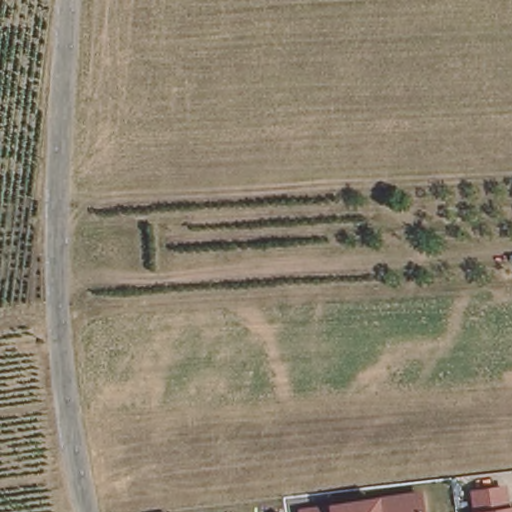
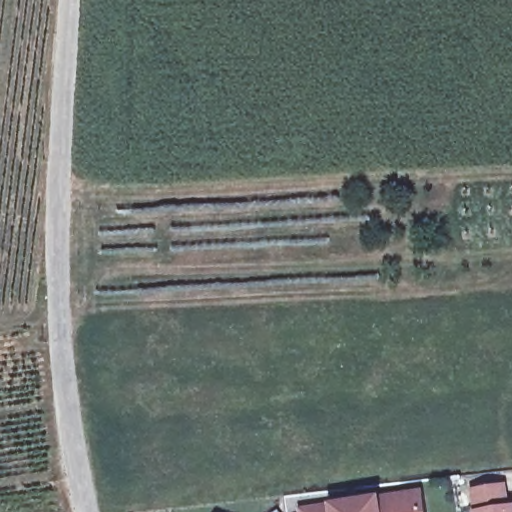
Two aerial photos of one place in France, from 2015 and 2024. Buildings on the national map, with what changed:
unchanged [(476,511),(471,490),(506,485),(509,508),(512,508),(512,512),(476,512),(476,511)]
unchanged [(422,512),(304,512),(304,509),(418,491),(422,512)]

